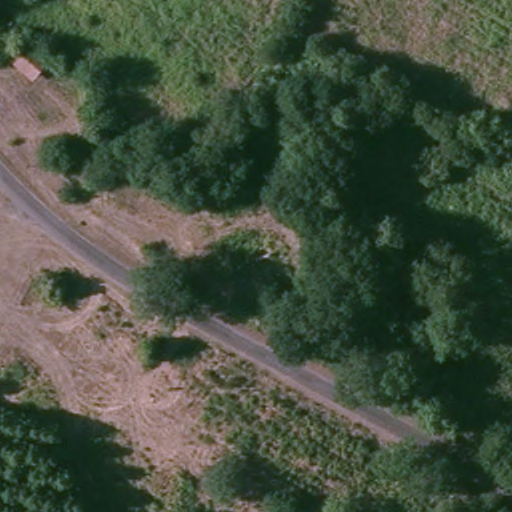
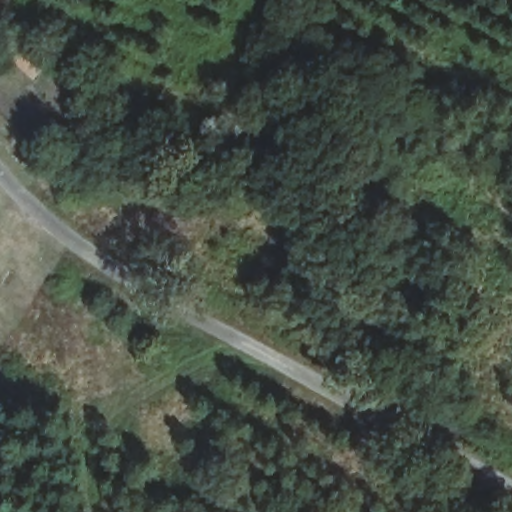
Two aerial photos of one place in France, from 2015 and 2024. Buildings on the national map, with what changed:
unchanged [(24,32),(51,55),(29,79),(2,54),(24,32)]

